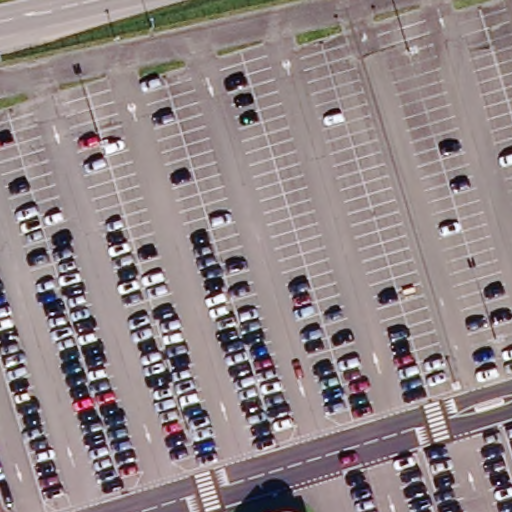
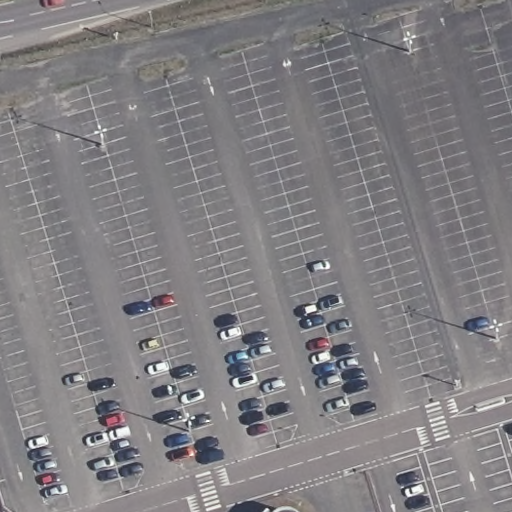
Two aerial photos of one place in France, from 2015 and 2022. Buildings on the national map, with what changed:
unchanged [(272,502),(276,499),(283,497),(291,498),(297,502),(300,506),(302,512),(267,512),(269,506),(272,502)]

